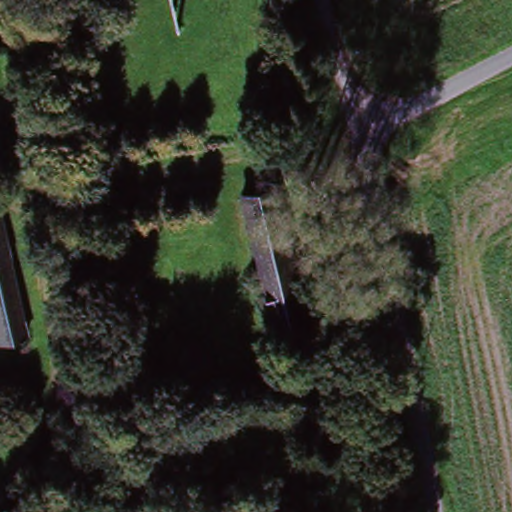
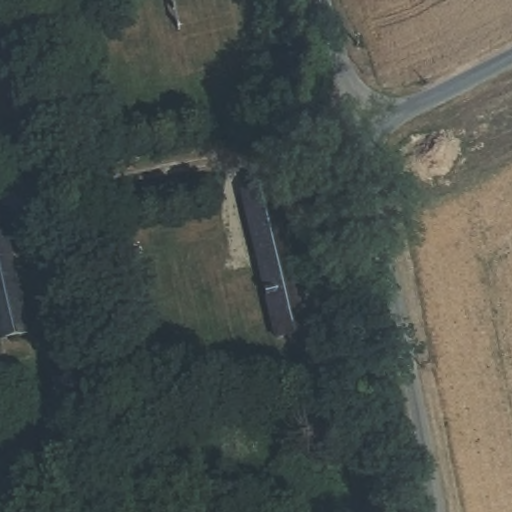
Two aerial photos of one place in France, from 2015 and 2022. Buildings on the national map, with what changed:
unchanged [(272,185),(306,333),(271,341),(236,194),(272,185)]
unchanged [(0,341),(0,233),(24,335),(0,341)]

